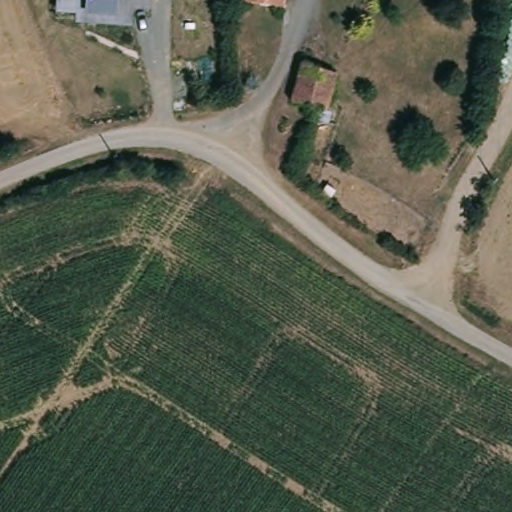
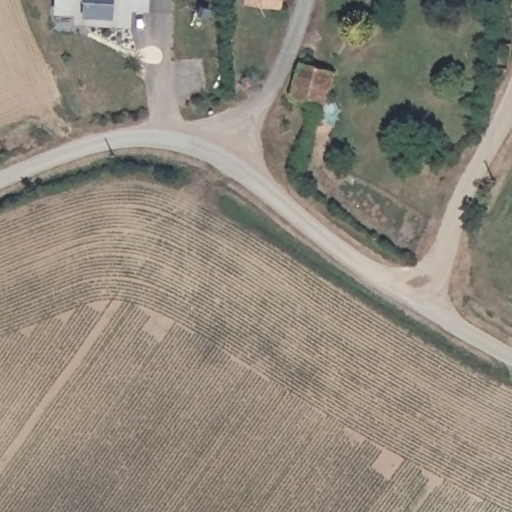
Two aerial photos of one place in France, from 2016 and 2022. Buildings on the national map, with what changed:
unchanged [(131,9),(130,26),(74,23),(75,14),(54,13),(55,0),(149,0),(149,9),(131,9)]
unchanged [(249,6),(249,0),(282,0),(280,11),(249,6)]
unchanged [(335,81),(326,116),(292,103),(301,69),(335,81)]

